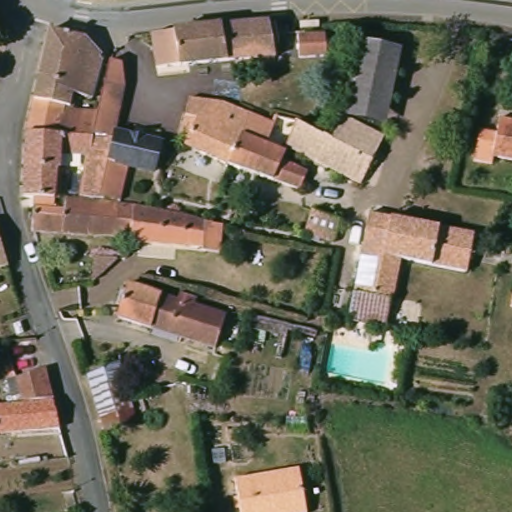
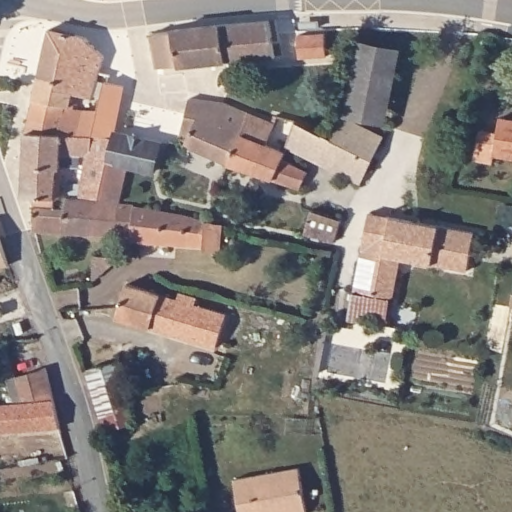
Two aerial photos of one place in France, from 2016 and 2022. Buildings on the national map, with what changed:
unchanged [(267,20),(269,56),(175,65),(171,29),(267,20)]
unchanged [(51,29),(83,37),(99,48),(106,55),(95,98),(78,93),(79,84),(39,74),(51,29)]
unchanged [(324,33),(324,55),(299,56),(298,34),(324,33)]
unchanged [(357,37),(397,42),(388,119),(348,114),(357,37)]
unchanged [(111,60),(121,61),(126,87),(118,133),(117,137),(107,136),(96,135),(101,111),(106,84),(111,60)]
unchanged [(79,84),(78,93),(74,109),(101,111),(96,135),(27,131),(29,118),(39,74),(79,84)]
unchanged [(236,135),(225,165),(182,147),(183,140),(177,137),(183,118),(189,98),(224,105),(245,110),(236,135)]
unchanged [(358,184),(288,145),(283,157),(306,168),(298,186),(245,171),(233,168),(225,165),(236,135),(245,110),(273,119),(275,115),(284,117),(324,130),(325,130),(326,131),(335,135),(374,155),(358,184)]
unchanged [(348,114),(385,134),(374,155),(335,135),(342,121),(348,114)]
unchanged [(491,137),(494,122),(512,125),(512,163),(486,159),(485,165),(468,162),(473,133),(491,137)]
unchanged [(64,205),(64,203),(65,194),(81,195),(86,152),(61,151),(60,166),(58,167),(56,195),(25,193),(27,131),(96,135),(107,136),(117,137),(118,133),(164,143),(158,169),(131,163),(131,164),(124,200),(136,202),(131,239),(31,230),(31,226),(33,215),(33,205),(34,202),(61,205),(64,205)]
unchanged [(142,203),(148,204),(189,214),(204,224),(215,227),(222,228),(216,261),(198,259),(200,250),(131,243),(131,239),(136,202),(142,203)]
unchanged [(324,213),(339,217),(332,241),(302,232),(303,232),(309,209),(324,213)]
unchanged [(371,291),(378,258),(361,254),(368,213),(391,218),(438,227),(475,234),(468,271),(433,264),(403,258),(395,296),(371,291)]
unchanged [(0,263),(0,228),(11,261),(0,263)]
unchanged [(126,265),(123,280),(122,286),(90,281),(92,261),(126,265)]
unchanged [(230,311),(220,346),(120,320),(130,285),(230,311)]
unchanged [(347,322),(349,311),(351,294),(388,300),(385,318),(383,328),(347,322)]
unchanged [(512,298),(512,312),(509,311),(512,300),(512,298)]
unchanged [(146,419),(109,429),(88,370),(125,359),(146,419)]
unchanged [(51,370),(60,399),(26,403),(21,373),(51,370)]
unchanged [(68,430),(0,437),(0,407),(61,402),(68,430)]
unchanged [(272,475),(304,469),(306,481),(309,512),(244,512),(238,481),(272,475)]

